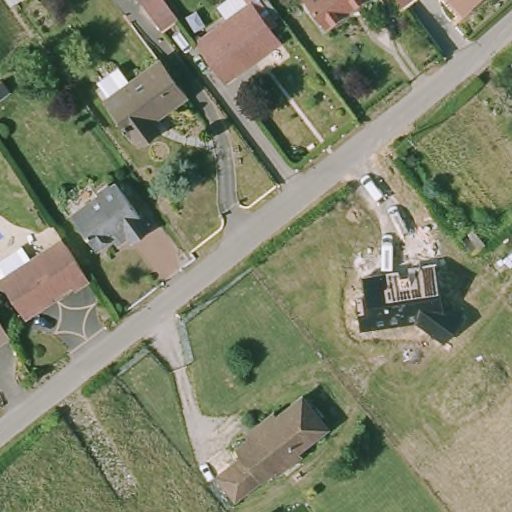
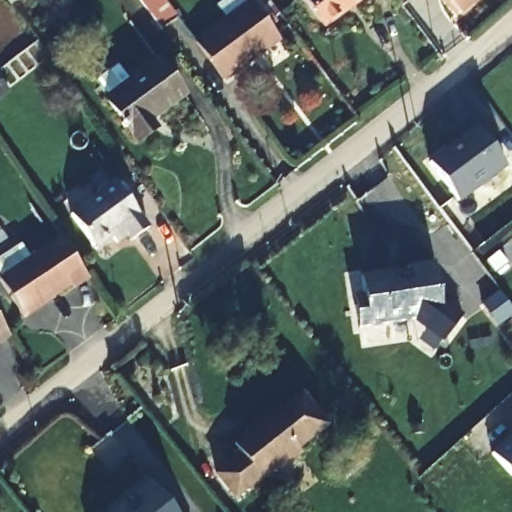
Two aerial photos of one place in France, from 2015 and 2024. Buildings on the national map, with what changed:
unchanged [(13,10),(6,0),(28,0),(13,10)]
unchanged [(185,15),(165,28),(145,0),(174,0),(185,15)]
unchanged [(275,42),(222,81),(193,38),(205,29),(245,0),(275,42)]
unchanged [(331,27),(310,0),(364,0),(331,27)]
unchanged [(405,9),(398,0),(417,0),(405,9)]
unchanged [(460,12),(449,0),(473,0),(460,12)]
unchanged [(110,96),(99,80),(120,65),(132,81),(165,58),(190,91),(152,119),(160,132),(142,144),(108,98),(110,96)]
new [(507,167),(460,202),(430,160),(475,126),(507,167)]
unchanged [(91,199),(90,197),(92,190),(102,184),(113,185),(145,229),(128,240),(125,234),(114,242),(111,237),(92,249),(67,215),(91,199)]
new [(0,249),(0,220),(13,240),(0,249)]
unchanged [(466,221),(484,243),(474,251),(455,230),(466,221)]
unchanged [(43,300),(45,303),(23,317),(0,280),(2,279),(0,276),(0,261),(22,246),(32,259),(63,238),(88,277),(71,288),(68,284),(43,300)]
unchanged [(363,296),(361,276),(398,271),(398,274),(408,271),(407,267),(435,263),(442,302),(462,317),(444,341),(415,319),(358,328),(354,298),(363,296)]
unchanged [(0,345),(0,319),(12,338),(0,345)]
unchanged [(263,410),(268,417),(297,391),(325,424),(297,449),(302,457),(280,475),(243,426),(263,410)]
unchanged [(280,475),(275,479),(270,473),(235,505),(215,481),(240,459),(232,448),(242,439),(237,431),(243,426),(280,475)]
new [(512,438),(512,472),(495,453),(512,438)]
new [(175,512),(116,512),(152,485),(175,512)]

